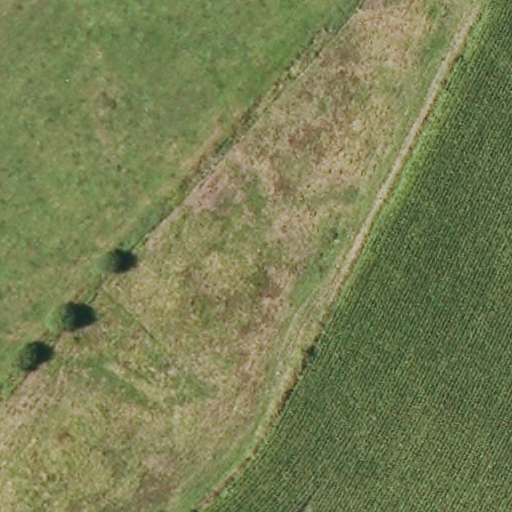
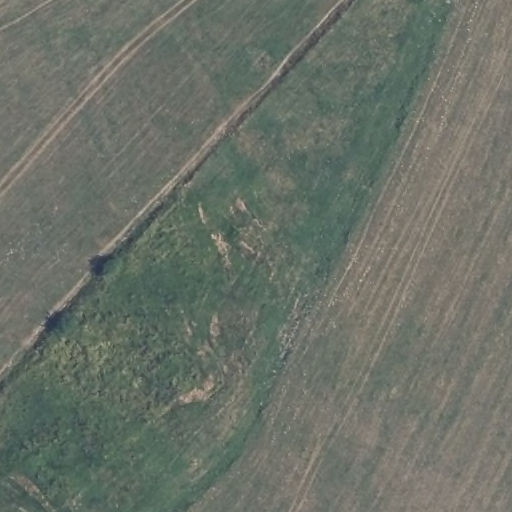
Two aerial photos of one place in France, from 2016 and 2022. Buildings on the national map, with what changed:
[]

